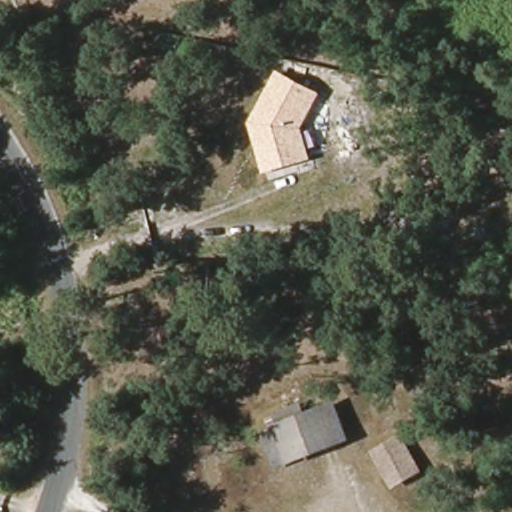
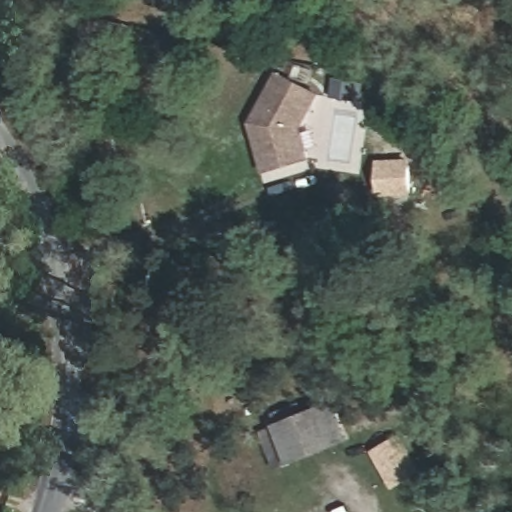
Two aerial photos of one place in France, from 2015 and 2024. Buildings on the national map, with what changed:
unchanged [(305,127),(307,132),(314,130),(317,145),(310,149),(312,159),(265,173),(250,124),(277,70),(321,93),(305,127)]
new [(383,196),(382,193),(378,193),(377,160),(411,158),(413,195),(383,196)]
unchanged [(270,429),(317,410),(331,405),(345,440),(331,445),(284,463),(270,429)]
unchanged [(420,472),(393,486),(373,450),(400,435),(420,472)]

